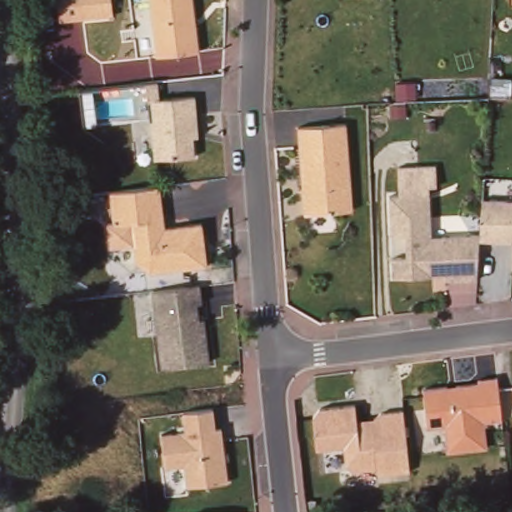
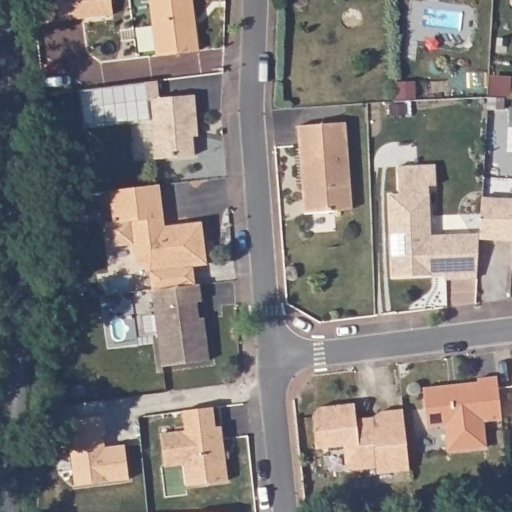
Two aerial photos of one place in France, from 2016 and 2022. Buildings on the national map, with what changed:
unchanged [(54,0),(111,0),(112,14),(56,20),(54,0)]
unchanged [(160,52),(154,0),(198,0),(204,47),(160,52)]
unchanged [(199,91),(202,125),(197,125),(200,151),(160,154),(154,95),(199,91)]
unchanged [(350,118),(357,204),(309,209),(302,121),(350,118)]
unchanged [(167,210),(163,214),(164,224),(206,218),(211,260),(155,268),(140,257),(135,217),(118,219),(114,187),(152,182),(164,180),(167,210)]
unchanged [(397,273),(397,254),(411,253),(411,230),(396,230),(395,191),(434,189),(435,232),(485,230),(484,234),(482,275),(450,277),(449,272),(437,272),(397,273)]
unchanged [(486,194),(512,195),(512,236),(484,234),(485,230),(486,194)]
unchanged [(201,298),(204,314),(208,314),(209,321),(214,357),(166,362),(156,286),(204,280),(206,297),(201,298)]
unchanged [(443,427),(426,428),(423,389),(478,383),(477,379),(496,377),(500,419),(483,422),(486,449),(446,454),(443,427)]
unchanged [(313,415),(319,407),(353,404),(355,419),(372,418),(381,411),(402,409),(408,471),(376,474),(376,469),(352,472),(345,467),(343,448),(315,449),(313,415)]
unchanged [(184,466),(165,468),(160,434),(184,431),(182,411),(212,407),(215,429),(221,429),(228,481),(186,486),(184,466)]
new [(125,444),(130,480),(74,488),(65,420),(104,416),(106,434),(104,435),(105,446),(125,444)]

